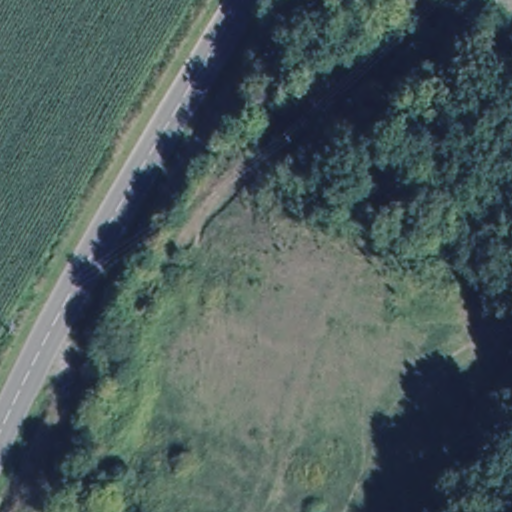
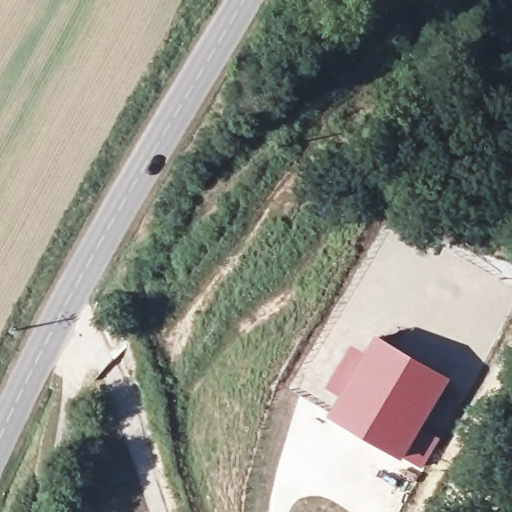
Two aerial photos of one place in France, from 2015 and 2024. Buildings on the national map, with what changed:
new [(353,344),(366,352),(379,334),(453,377),(424,427),(440,437),(422,469),(388,451),(329,416),(341,396),(326,386),(353,344)]

